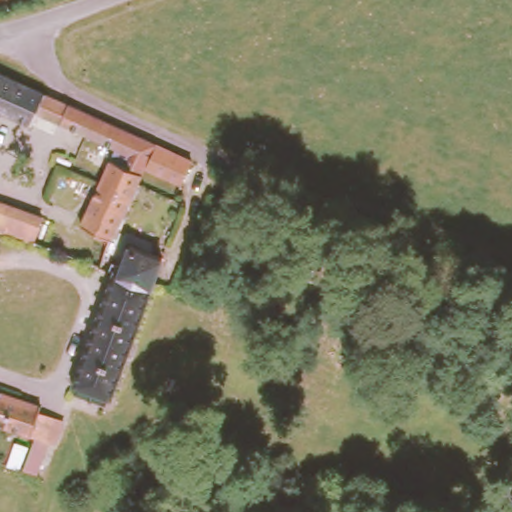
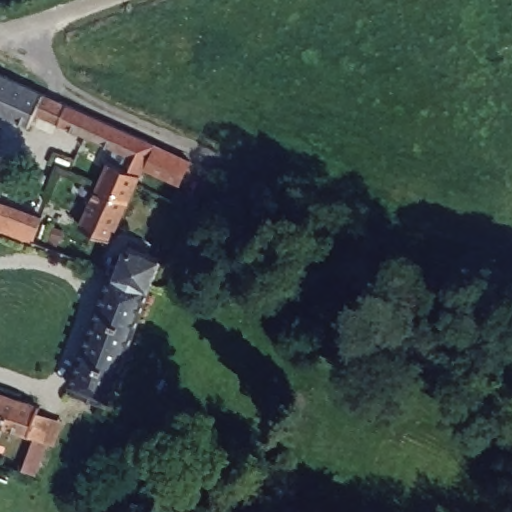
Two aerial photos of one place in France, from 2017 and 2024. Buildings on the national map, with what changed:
unchanged [(145,165),(108,246),(79,232),(110,164),(124,170),(130,156),(36,116),(30,128),(0,115),(0,76),(153,146),(178,158),(171,176),(145,165)]
unchanged [(56,219),(47,243),(0,226),(0,199),(56,219)]
unchanged [(85,381),(79,379),(120,266),(117,265),(117,262),(120,255),(127,257),(136,235),(165,246),(157,267),(161,269),(117,392),(113,391),(112,395),(84,383),(85,381)]
unchanged [(0,426),(0,394),(47,411),(45,418),(58,422),(51,443),(37,439),(0,426)]

